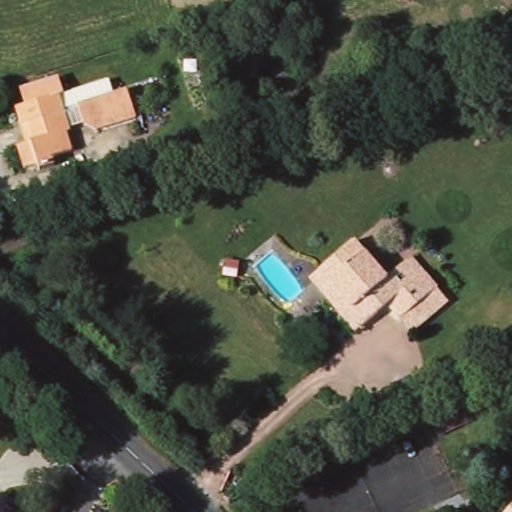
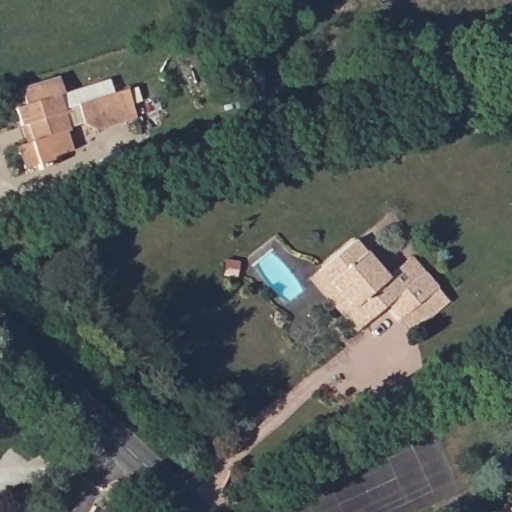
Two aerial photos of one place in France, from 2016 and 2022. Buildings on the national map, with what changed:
unchanged [(23,109),(33,107),(26,87),(65,75),(71,95),(66,96),(71,113),(84,109),(83,106),(133,91),(141,120),(103,131),(96,128),(90,125),(75,129),(75,132),(73,135),(78,152),(59,158),(61,166),(46,170),(45,166),(33,170),(26,147),(34,145),(29,127),(23,109)]
unchanged [(394,302),(369,323),(362,329),(317,276),(327,267),(360,238),(393,275),(396,272),(415,255),(428,271),(453,299),(441,310),(417,330),(406,316),(394,302)]
unchanged [(439,436),(432,418),(467,402),(475,419),(439,436)]
unchanged [(509,512),(512,508),(512,512),(509,512)]

